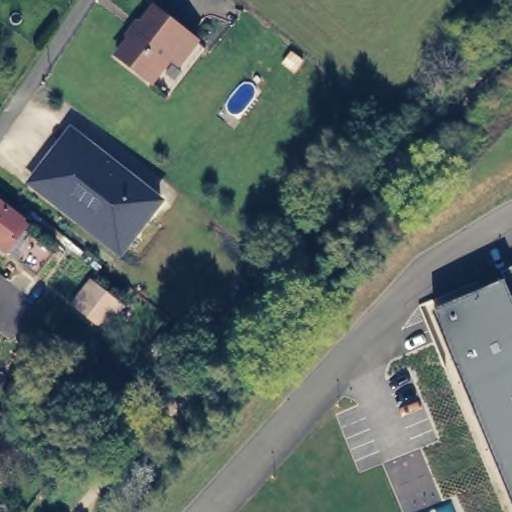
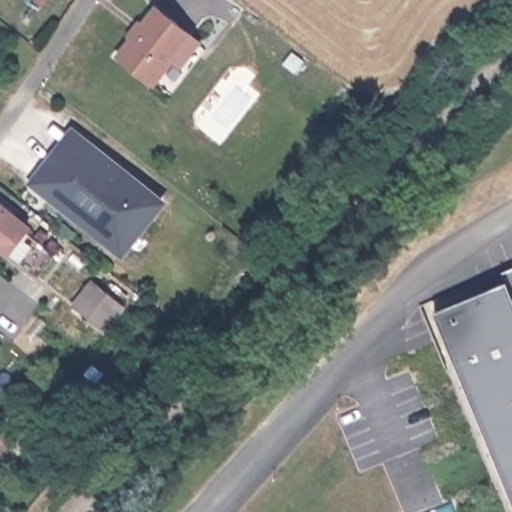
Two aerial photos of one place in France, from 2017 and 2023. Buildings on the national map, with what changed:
unchanged [(178,60),(167,52),(147,79),(110,51),(147,1),(185,28),(182,31),(193,39),(178,60)]
unchanged [(122,258),(27,184),(69,126),(165,203),(122,258)]
unchanged [(22,228),(20,231),(52,256),(33,279),(0,252),(0,210),(22,228)]
unchanged [(507,282),(502,273),(512,269),(512,498),(435,313),(507,282)]
unchanged [(98,282),(127,306),(111,327),(81,303),(98,282)]

